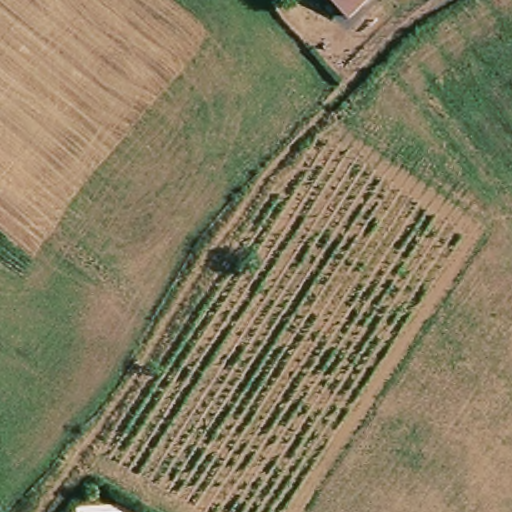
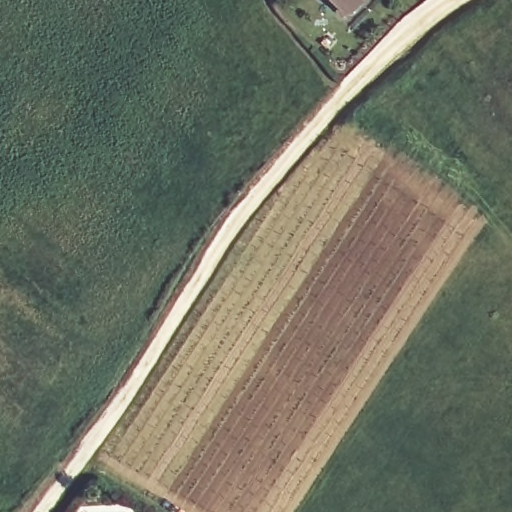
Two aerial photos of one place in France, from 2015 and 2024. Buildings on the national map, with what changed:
unchanged [(342,21),(322,0),(364,0),(342,21)]

